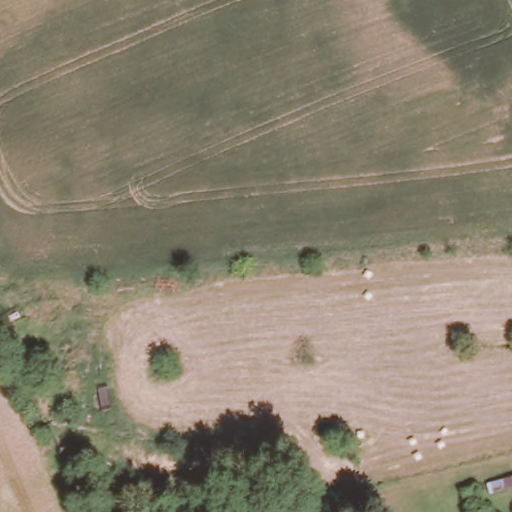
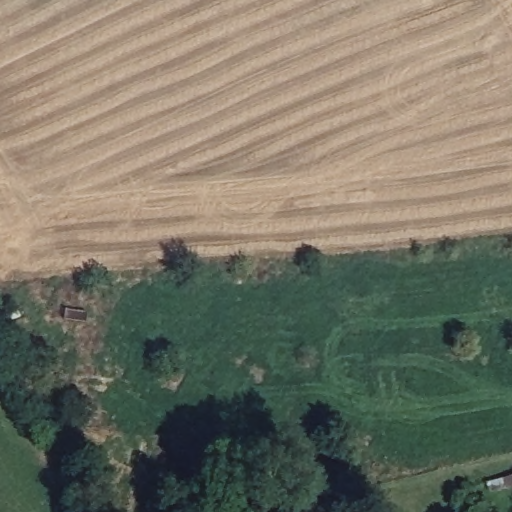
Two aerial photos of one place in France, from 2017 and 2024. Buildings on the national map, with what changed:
unchanged [(512,493),(492,498),(490,489),(512,483),(512,493)]

